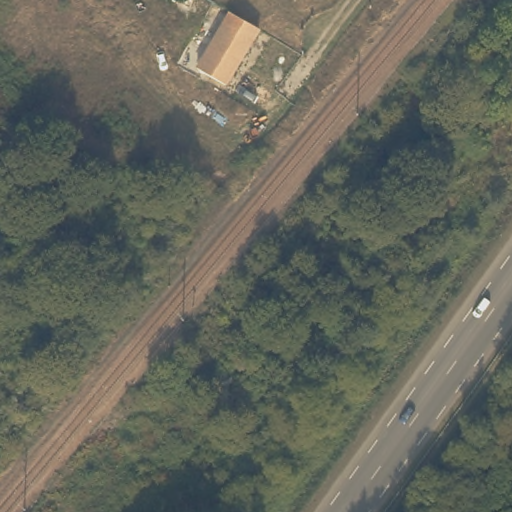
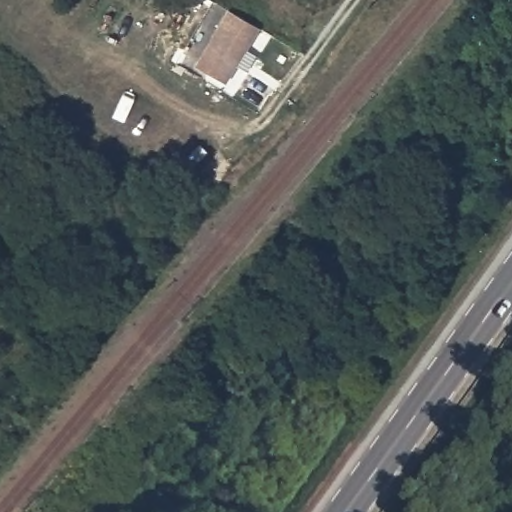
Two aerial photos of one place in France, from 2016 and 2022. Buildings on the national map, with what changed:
unchanged [(259,24),(226,81),(195,64),(222,15),(226,18),(231,9),(259,24)]

